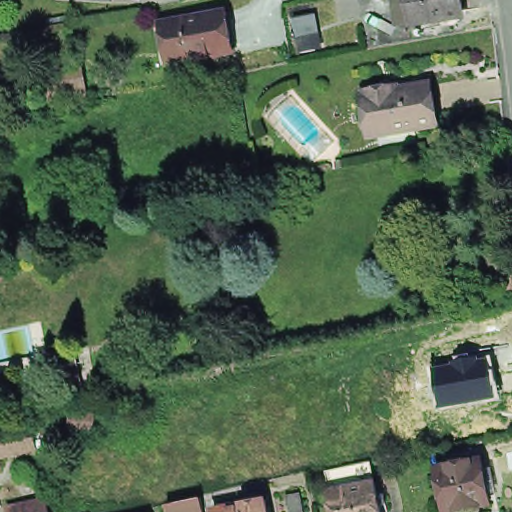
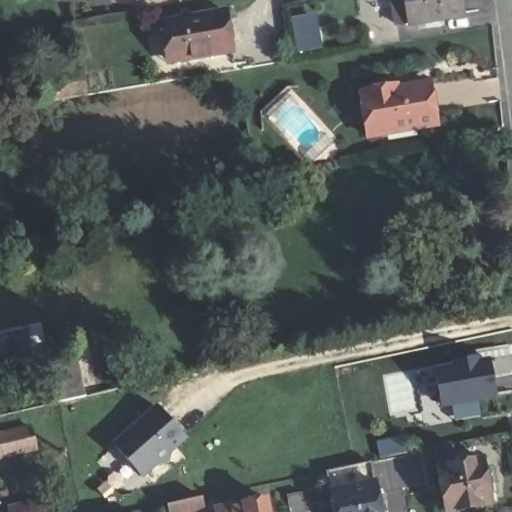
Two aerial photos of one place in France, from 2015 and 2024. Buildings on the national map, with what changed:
unchanged [(463,0),(466,16),(415,26),(410,0),(463,0)]
unchanged [(157,22),(202,13),(226,9),(234,49),(175,60),(165,62),(157,22)]
unchanged [(294,14),(310,11),(317,45),(300,48),(294,14)]
unchanged [(51,77),(49,67),(88,60),(92,87),(17,100),(14,85),(51,77)]
unchanged [(373,133),(365,91),(369,90),(369,88),(402,82),(402,85),(434,80),(442,121),(422,124),(397,129),(373,133)]
unchanged [(74,347),(80,380),(65,382),(57,385),(50,352),(58,351),(74,347)]
unchanged [(454,365),(453,360),(480,356),(480,360),(492,357),(500,398),(440,410),(433,368),(454,365)]
demolished [(136,392),(119,396),(117,387),(135,383),(136,392)]
unchanged [(97,397),(95,419),(70,417),(71,398),(87,400),(88,397),(97,397)]
new [(185,438),(141,478),(110,443),(153,403),(185,438)]
unchanged [(35,446),(0,454),(0,433),(30,426),(35,446)]
unchanged [(437,465),(480,456),(489,501),(445,510),(437,465)]
unchanged [(334,488),(330,468),(374,458),(379,480),(385,512),(339,512),(334,488)]
unchanged [(286,492),(300,490),(305,512),(291,512),(286,492)]
unchanged [(167,502),(202,495),(205,512),(169,512),(167,502)]
unchanged [(215,506),(265,497),(268,512),(216,512),(215,506)]
unchanged [(49,506),(50,512),(16,512),(49,506)]

